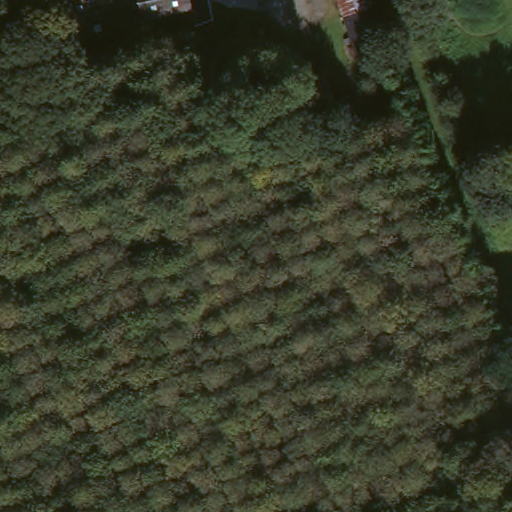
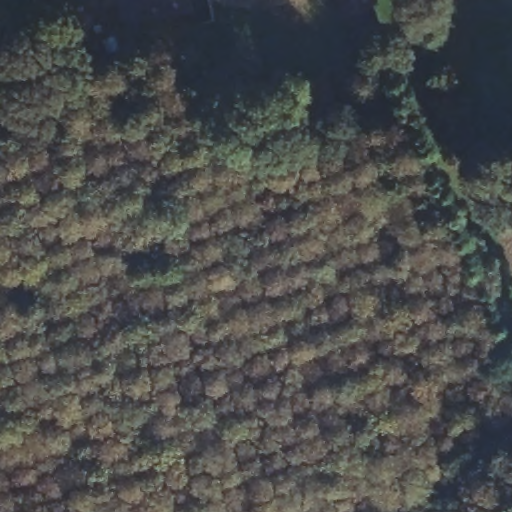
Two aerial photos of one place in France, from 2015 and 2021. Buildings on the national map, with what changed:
unchanged [(39,0),(67,0),(71,14),(39,24),(31,2),(39,0)]
unchanged [(130,0),(197,0),(199,7),(141,29),(130,0)]
unchanged [(376,40),(354,48),(343,18),(337,0),(369,0),(372,7),(381,39),(376,40)]
unchanged [(349,112),(297,129),(283,90),(338,70),(349,112)]

